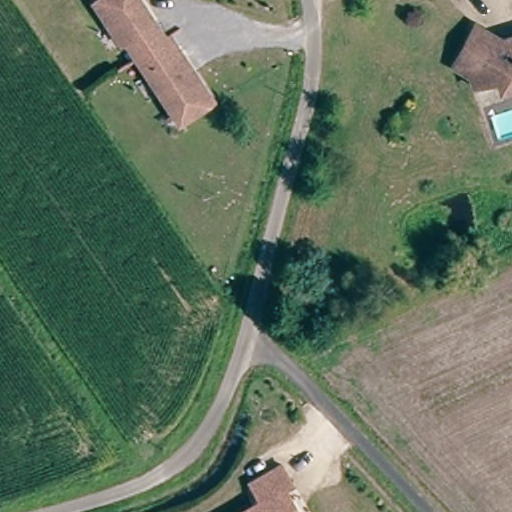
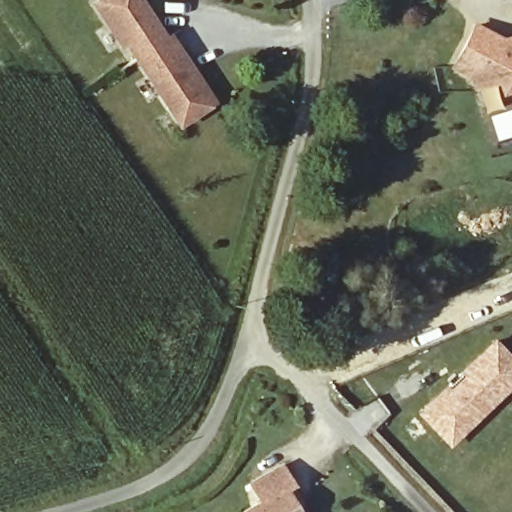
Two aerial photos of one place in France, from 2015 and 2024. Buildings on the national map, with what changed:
unchanged [(143,58),(105,1),(106,0),(149,0),(174,37),(147,55),(143,58)]
unchanged [(462,68),(482,28),(508,40),(512,39),(512,87),(508,88),(507,83),(482,91),(478,76),(462,68)]
unchanged [(224,99),(191,121),(147,55),(174,37),(180,33),(224,99)]
new [(512,355),(512,388),(450,448),(415,411),(495,336),(512,355)]
unchanged [(252,484),(283,466),(295,486),(287,491),(298,512),(245,512),(261,503),(252,484)]

